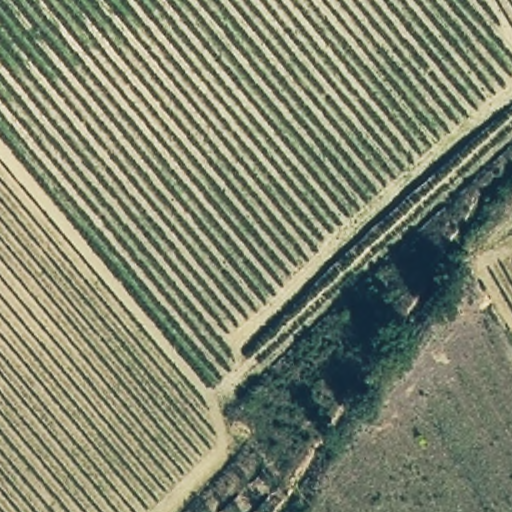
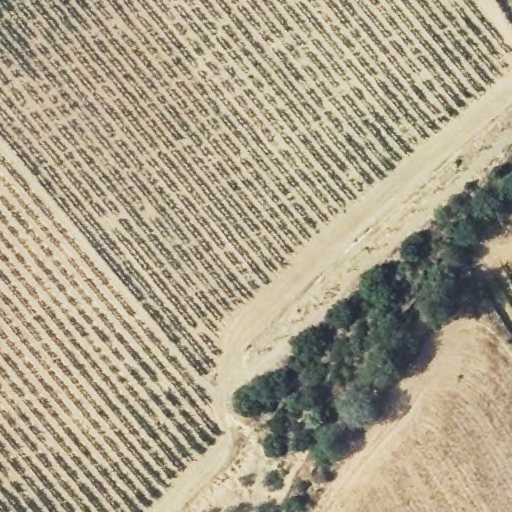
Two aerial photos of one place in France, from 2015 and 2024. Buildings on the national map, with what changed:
[]

